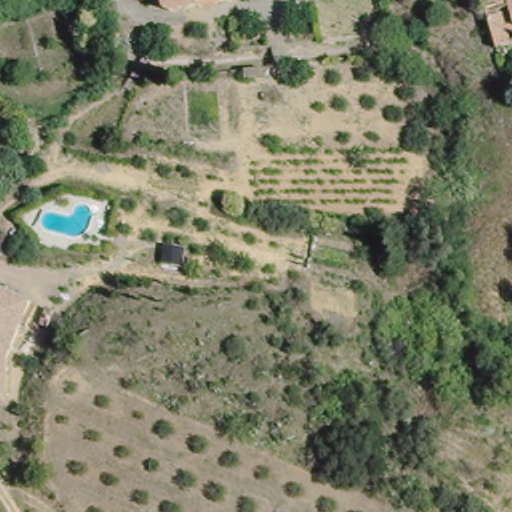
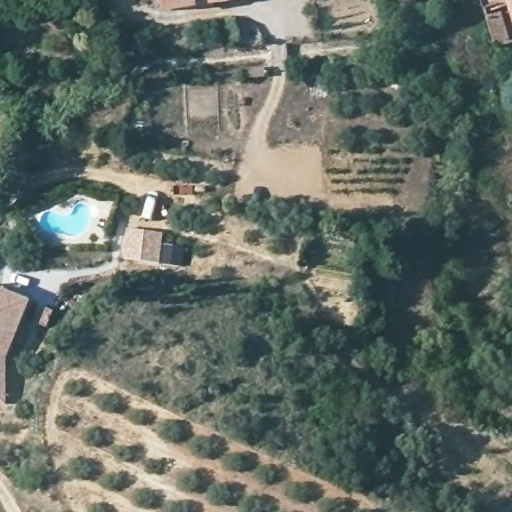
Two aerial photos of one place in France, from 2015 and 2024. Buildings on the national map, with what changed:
unchanged [(174,11),(166,12),(161,11),(158,7),(160,0),(221,0),(221,2),(174,11)]
unchanged [(224,2),(221,2),(221,0),(235,0),(224,2)]
unchanged [(478,0),(501,0),(503,5),(493,8),(504,48),(493,51),(478,0)]
unchanged [(504,0),(512,0),(512,23),(504,0)]
new [(126,227),(161,232),(161,243),(182,246),(179,264),(120,257),(126,227)]
unchanged [(5,352),(3,400),(0,399),(0,283),(29,296),(5,352)]

